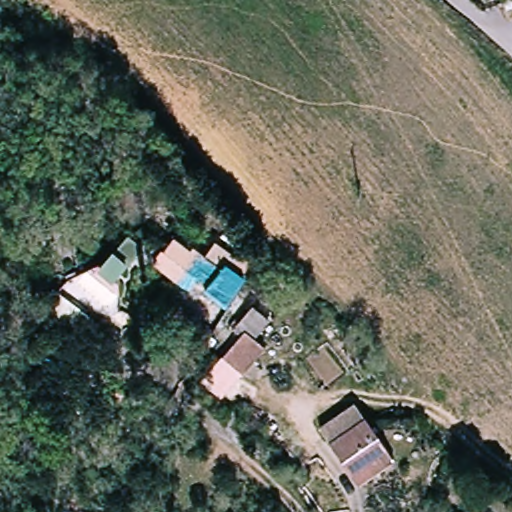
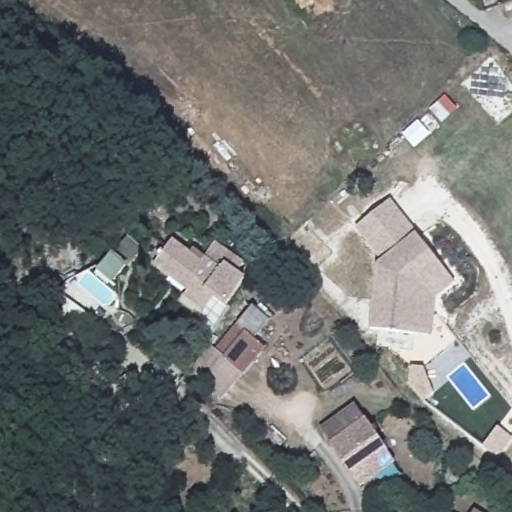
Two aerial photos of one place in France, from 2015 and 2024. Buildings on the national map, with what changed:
new [(415,233),(453,282),(436,297),(432,335),(369,327),(376,265),(380,261),(354,229),(390,200),(415,233)]
unchanged [(153,271),(172,243),(202,264),(216,244),(245,264),(237,274),(244,279),(225,306),(227,307),(208,334),(188,319),(200,304),(153,271)]
unchanged [(129,268),(115,288),(96,272),(111,252),(129,268)]
unchanged [(238,335),(231,329),(253,305),(267,320),(251,338),(261,347),(237,373),(220,356),(238,335)]
new [(238,335),(220,356),(237,373),(218,399),(199,384),(190,376),(231,329),(238,335)]
unchanged [(363,491),(357,481),(336,449),(326,434),(361,410),(376,432),(392,457),(399,467),(363,491)]

